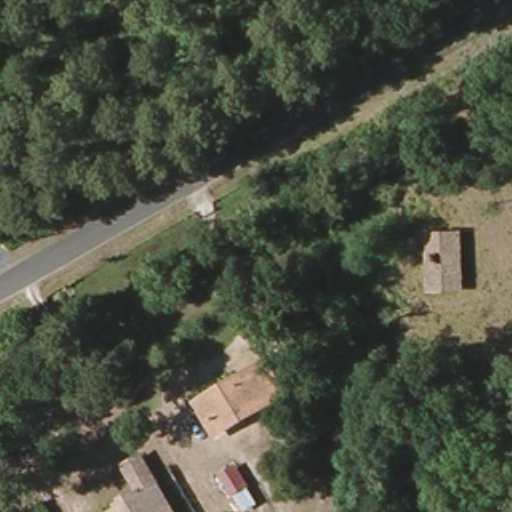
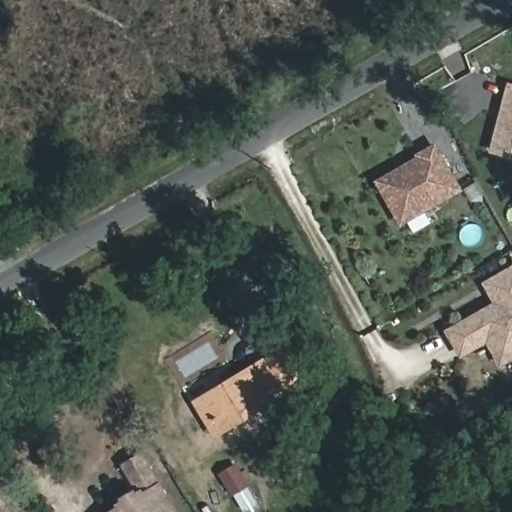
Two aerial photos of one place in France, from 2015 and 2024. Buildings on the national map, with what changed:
new [(507,83),(512,84),(512,158),(490,153),(507,83)]
new [(416,153),(436,142),(462,191),(401,226),(375,180),(417,157),(416,153)]
demolished [(512,182),(512,195),(502,195),(502,183),(512,182)]
demolished [(460,233),(468,289),(432,294),(423,240),(460,233)]
new [(487,340),(462,355),(449,333),(490,308),(497,304),(486,284),(512,269),(512,358),(502,364),(494,351),(487,340)]
unchanged [(262,367),(278,401),(227,434),(207,400),(262,367)]
demolished [(512,382),(512,413),(509,413),(512,382)]
unchanged [(134,500),(115,468),(141,455),(172,512),(114,512),(134,500)]
new [(239,506),(234,498),(222,480),(237,471),(247,489),(253,497),(239,506)]

